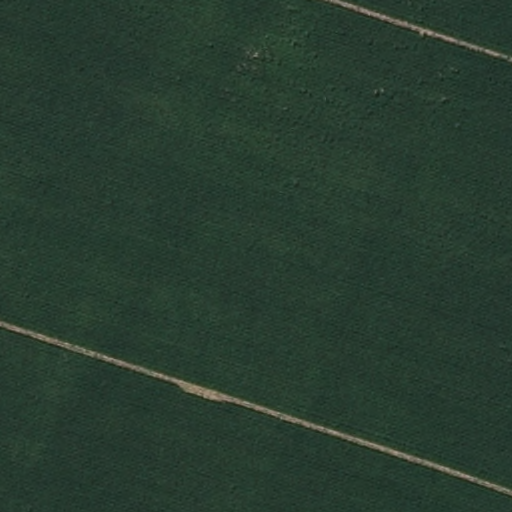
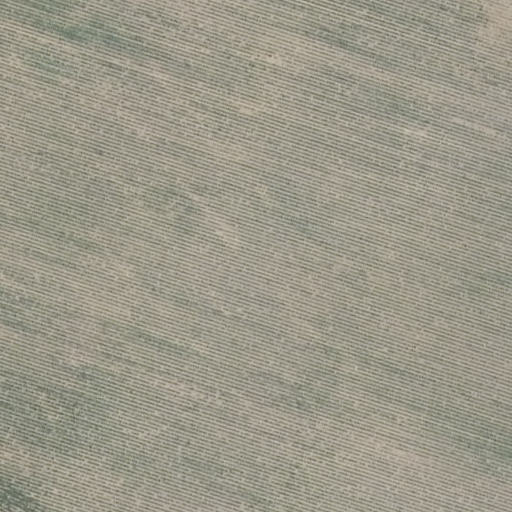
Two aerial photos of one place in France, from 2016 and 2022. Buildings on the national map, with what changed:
[]

